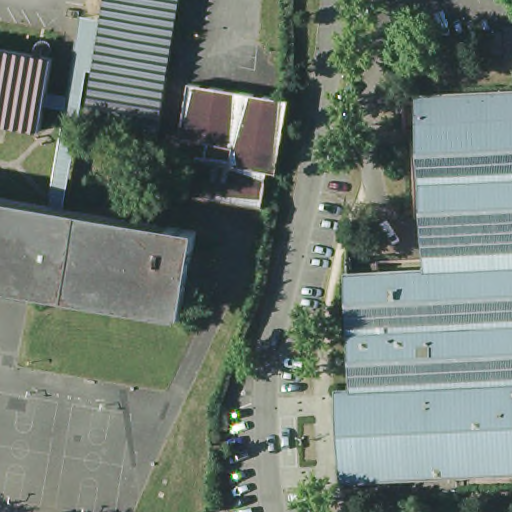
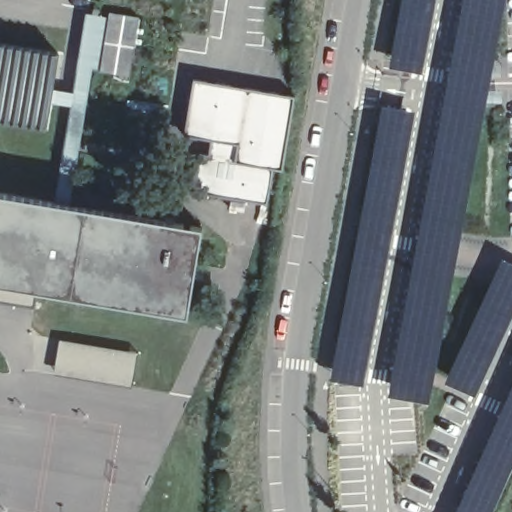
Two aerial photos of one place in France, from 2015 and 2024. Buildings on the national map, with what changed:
unchanged [(184,0),(163,126),(90,115),(97,67),(107,13),(109,0),(184,0)]
unchanged [(97,67),(90,66),(79,64),(89,9),(107,13),(97,67)]
demolished [(507,33),(512,32),(512,63),(509,63),(507,33)]
demolished [(505,36),(505,56),(493,56),(492,36),(505,36)]
unchanged [(67,204),(55,202),(73,100),(50,97),(47,124),(0,117),(0,41),(58,50),(52,86),(75,90),(79,64),(90,66),(67,204)]
unchanged [(280,170),(270,168),(265,205),(194,193),(200,155),(208,156),(211,141),(184,137),(194,82),(287,99),(293,99),(285,146),(280,170)]
demolished [(339,395),(352,394),(349,280),(395,278),(429,277),(421,102),(512,98),(512,478),(395,484),(342,487),(339,395)]
unchanged [(55,202),(67,204),(200,225),(185,314),(35,289),(32,289),(42,238),(0,231),(0,192),(55,202)]
unchanged [(35,295),(0,289),(0,231),(42,238),(32,289),(35,289),(35,295)]
new [(137,353),(132,388),(54,375),(60,340),(137,353)]

